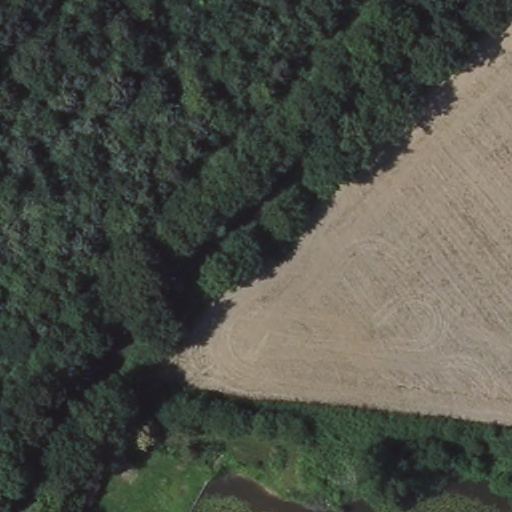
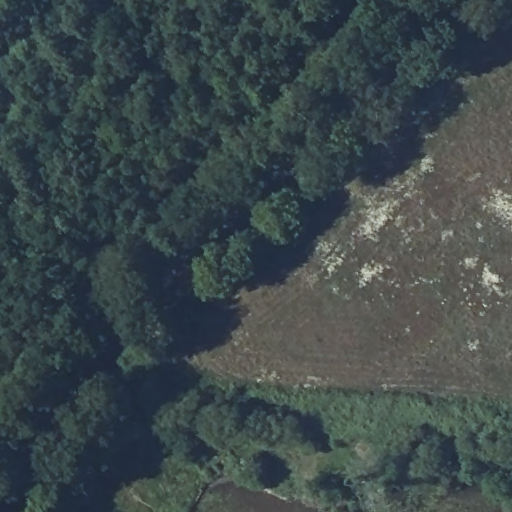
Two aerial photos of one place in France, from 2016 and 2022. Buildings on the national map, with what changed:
unchanged [(98,491),(86,511),(69,499),(80,479),(98,491)]

